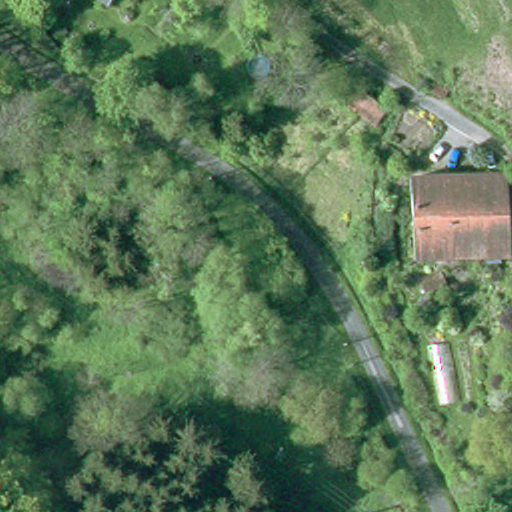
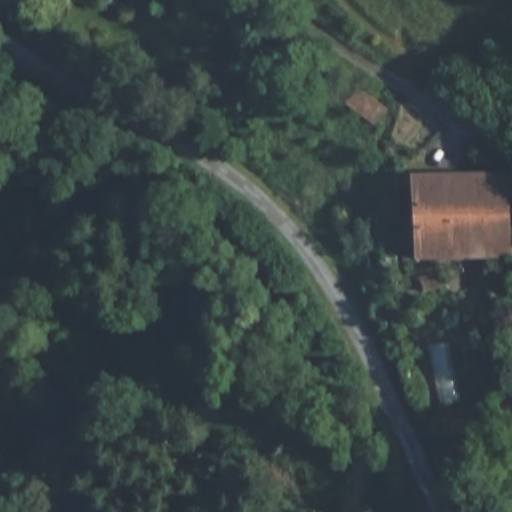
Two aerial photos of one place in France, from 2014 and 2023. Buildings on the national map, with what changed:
unchanged [(504,176),(511,251),(418,258),(414,218),(404,219),(403,207),(411,206),(409,179),(499,172),(504,176)]
unchanged [(434,290),(423,298),(417,291),(429,283),(434,290)]

